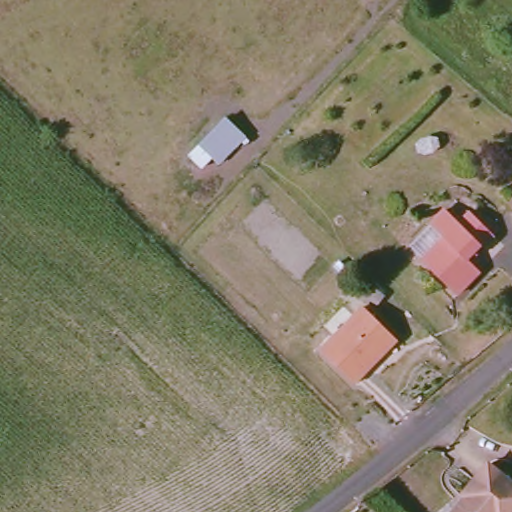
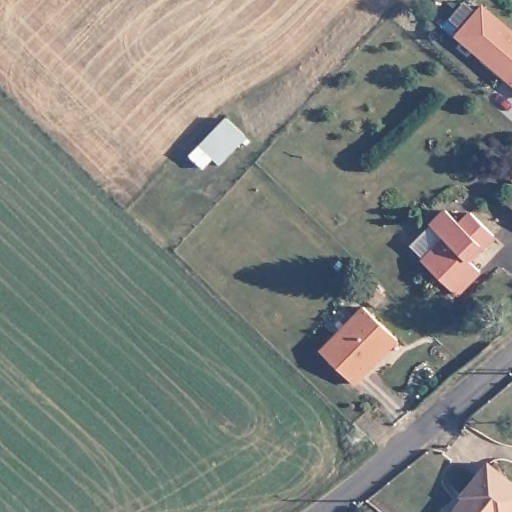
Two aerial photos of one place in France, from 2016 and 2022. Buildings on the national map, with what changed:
new [(512,29),(512,87),(454,36),(482,3),(512,29)]
unchanged [(253,141),(243,152),(239,148),(223,164),(216,156),(204,172),(190,156),(202,144),(228,116),(253,141)]
unchanged [(450,211),(463,224),(473,213),(497,235),(484,251),(481,247),(468,262),(480,273),(459,297),(425,266),(450,240),(435,227),(450,211)]
unchanged [(357,384),(322,350),(364,307),(401,342),(357,384)]
unchanged [(467,498),(493,468),(512,484),(512,512),(461,512),(470,501),(467,498)]

